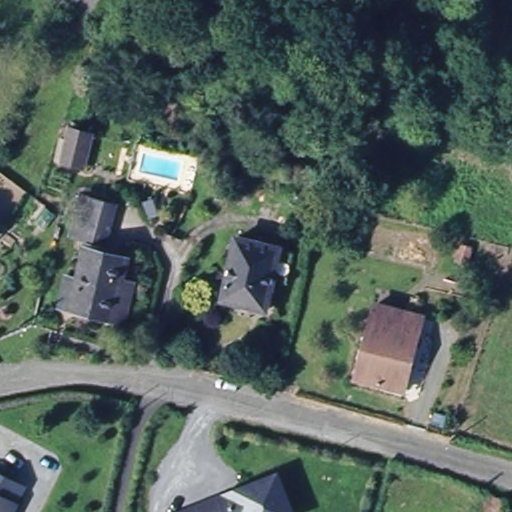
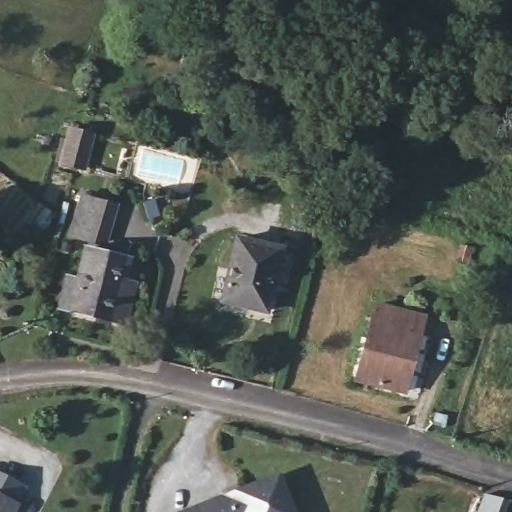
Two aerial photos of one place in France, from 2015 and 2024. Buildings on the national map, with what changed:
unchanged [(72,169),(58,167),(67,129),(82,132),(91,133),(88,147),(83,172),(72,169)]
unchanged [(76,238),(90,193),(122,203),(108,248),(76,238)]
unchanged [(266,310),(218,296),(235,236),(282,248),(266,310)]
unchanged [(64,279),(81,282),(88,249),(128,256),(116,318),(76,310),(59,307),(64,279)]
unchanged [(407,387),(362,375),(382,300),(428,313),(407,387)]
unchanged [(20,497),(24,499),(16,512),(0,512),(0,466),(29,483),(20,497)]
unchanged [(218,493),(218,492),(234,487),(274,470),(290,508),(282,512),(249,512),(249,510),(245,512),(172,512),(179,509),(218,493)]
unchanged [(508,512),(479,512),(486,492),(512,500),(508,512)]

